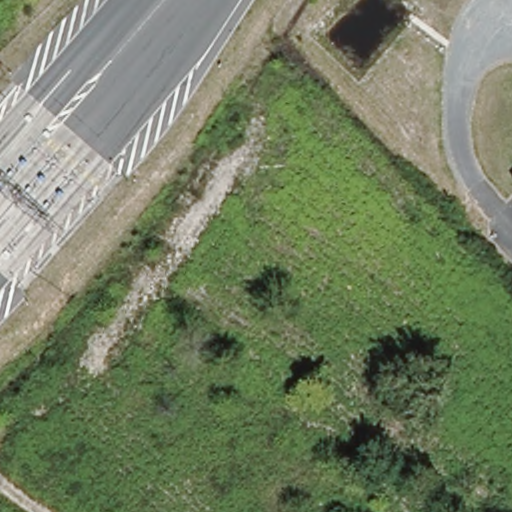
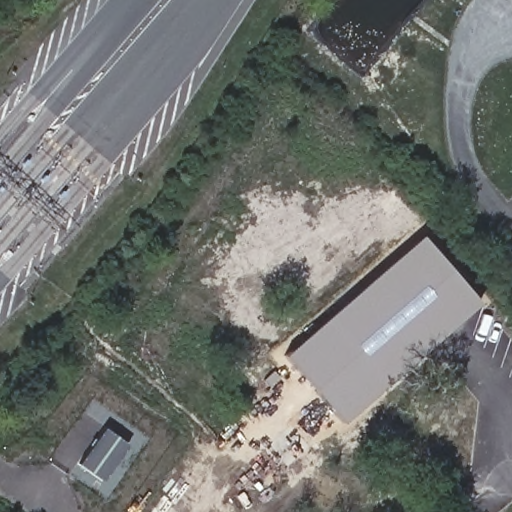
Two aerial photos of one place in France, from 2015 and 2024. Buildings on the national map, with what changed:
new [(283,355),(422,235),(481,304),(343,423),(313,389),(283,355)]
new [(102,481),(79,465),(104,429),(127,445),(102,481)]

